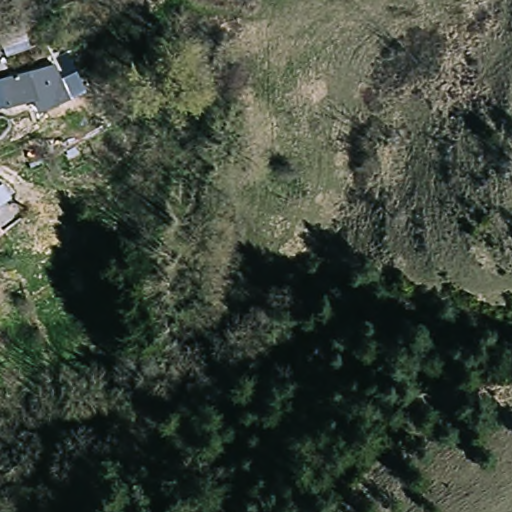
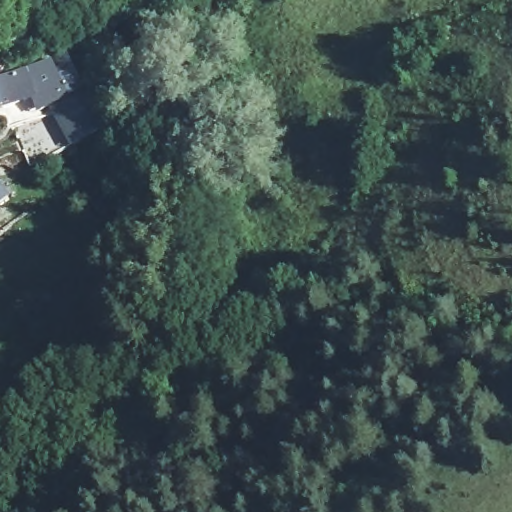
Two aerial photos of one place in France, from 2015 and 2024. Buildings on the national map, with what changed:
unchanged [(27,41),(1,50),(0,50),(0,34),(23,28),(27,41)]
unchanged [(83,86),(80,88),(84,97),(65,106),(60,97),(42,104),(40,99),(27,103),(24,96),(41,90),(29,63),(42,57),(67,48),(83,86)]
unchanged [(41,90),(24,96),(5,101),(3,102),(0,103),(0,73),(29,63),(41,90)]
unchanged [(9,201),(0,205),(0,179),(9,186),(3,188),(9,201)]

